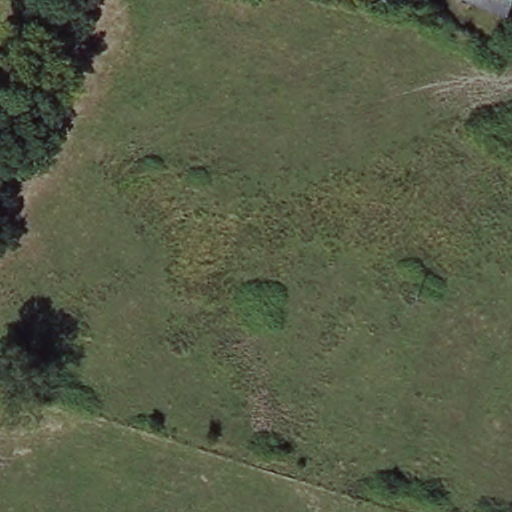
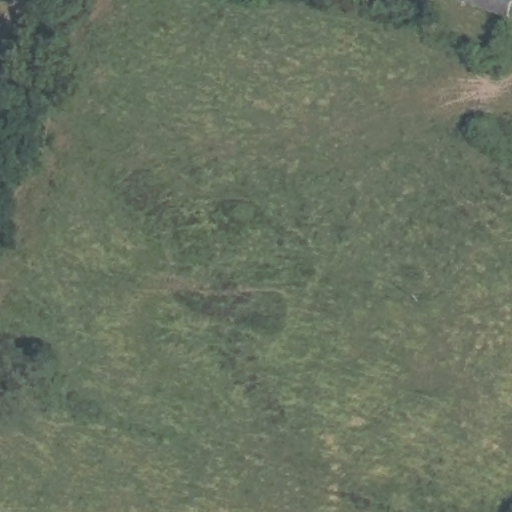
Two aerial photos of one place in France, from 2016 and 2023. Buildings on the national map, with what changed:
unchanged [(512,0),(512,3),(509,11),(508,14),(476,0),(512,0)]

